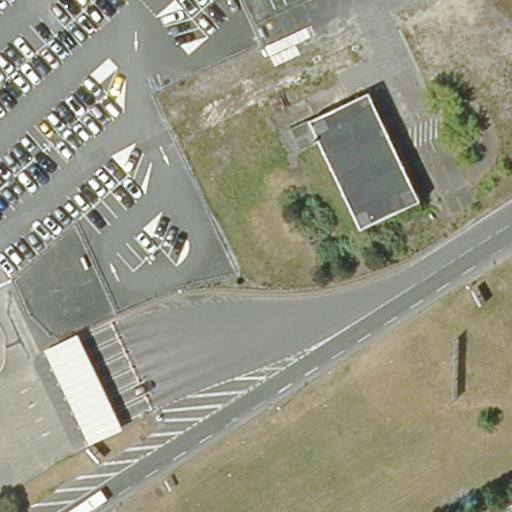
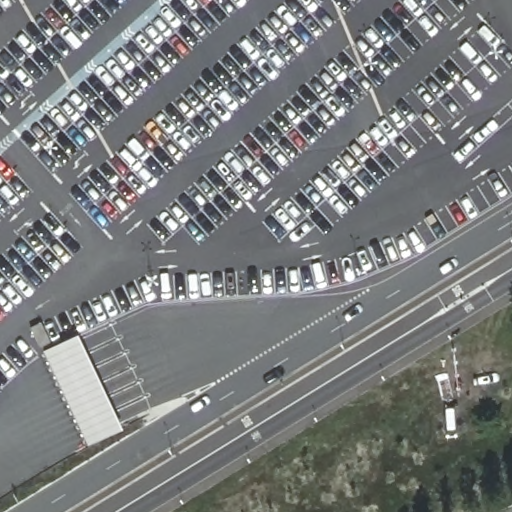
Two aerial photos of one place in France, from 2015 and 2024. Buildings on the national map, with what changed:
demolished [(318,6),(325,27),(298,38),(289,18),(318,6)]
demolished [(324,144),(304,153),(293,130),(313,120),(374,90),(384,114),(427,202),(365,232),(324,144)]
unchanged [(45,347),(83,329),(129,427),(91,445),(45,347)]

